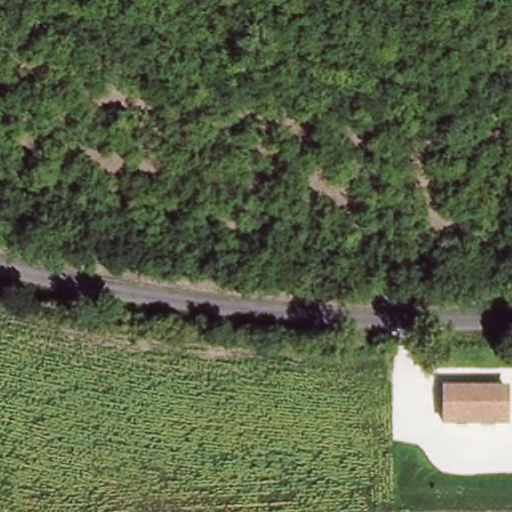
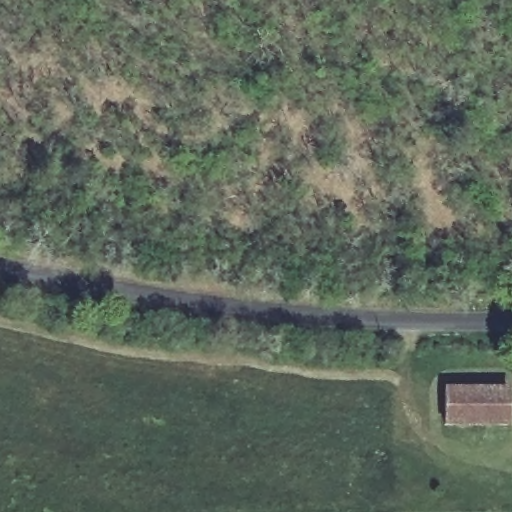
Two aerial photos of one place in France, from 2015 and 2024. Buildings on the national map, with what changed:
unchanged [(442,385),(505,387),(504,423),(441,420),(442,385)]

